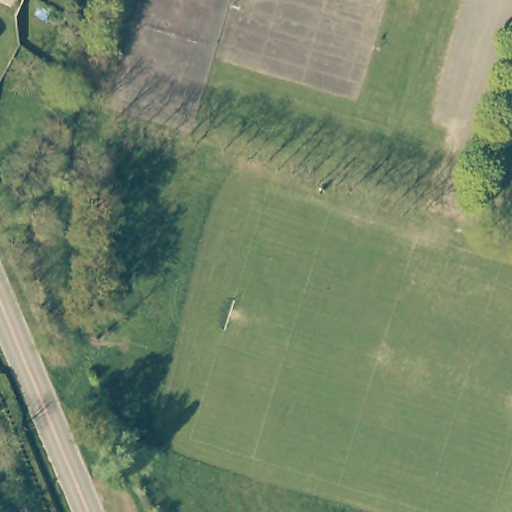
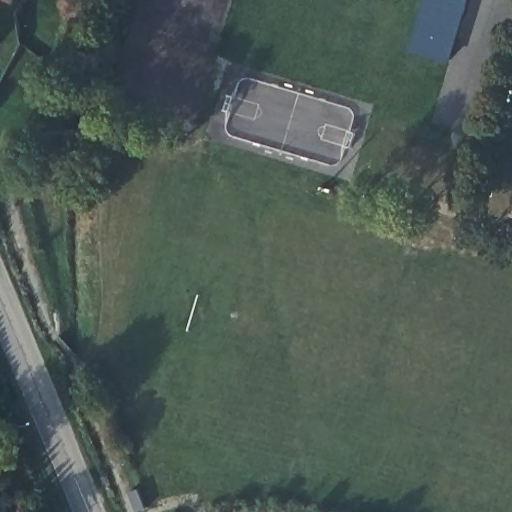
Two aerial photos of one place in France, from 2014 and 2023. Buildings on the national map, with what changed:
new [(452,61),(414,49),(428,0),(470,0),(452,61)]

